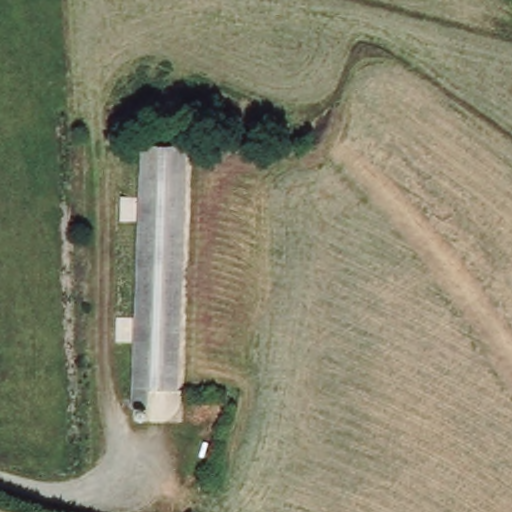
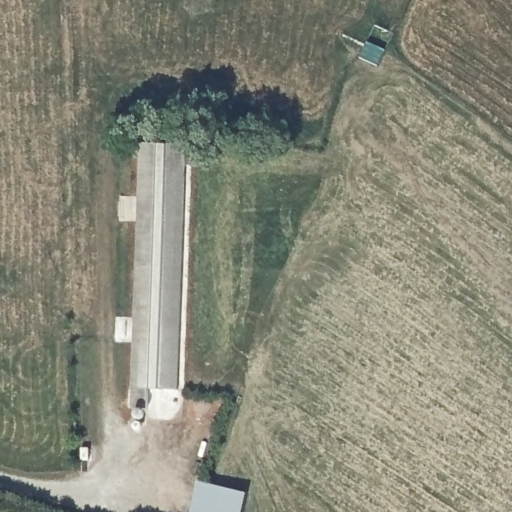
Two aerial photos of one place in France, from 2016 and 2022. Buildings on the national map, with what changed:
unchanged [(188,144),(179,390),(149,388),(148,408),(133,407),(143,142),(188,144)]
new [(249,492),(244,512),(191,512),(199,480),(249,492)]

